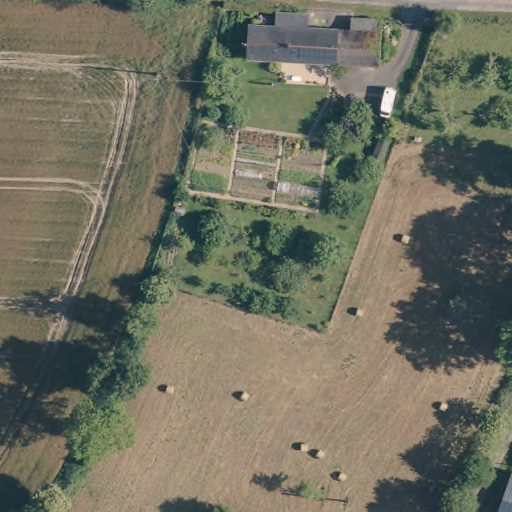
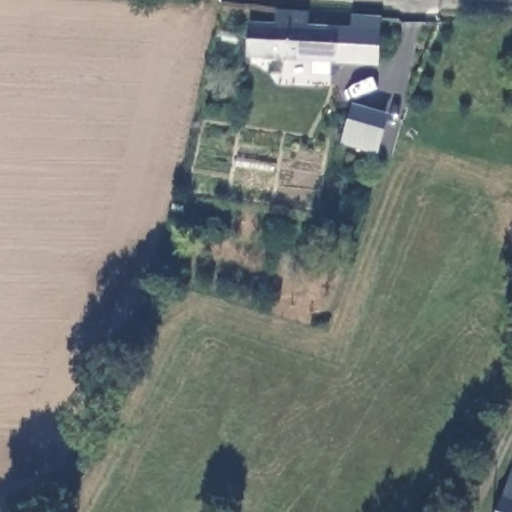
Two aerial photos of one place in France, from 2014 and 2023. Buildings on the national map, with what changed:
unchanged [(332,64),(246,54),(251,20),(276,22),(278,9),(307,14),(305,26),(337,30),(332,64)]
unchanged [(332,64),(337,30),(376,35),(375,70),(332,64)]
new [(352,105),(387,116),(377,155),(341,145),(352,105)]
unchanged [(501,498),(512,475),(512,503),(501,498)]
unchanged [(501,498),(512,503),(512,512),(496,512),(501,498)]

